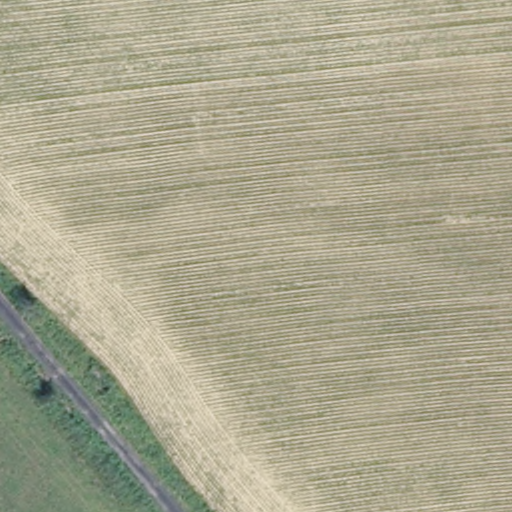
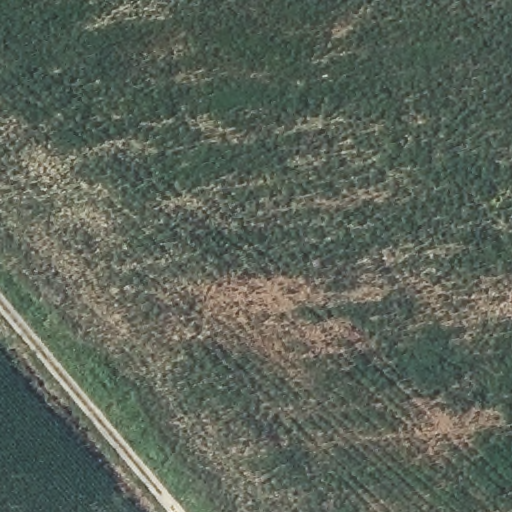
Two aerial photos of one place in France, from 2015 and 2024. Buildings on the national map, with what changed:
[]

